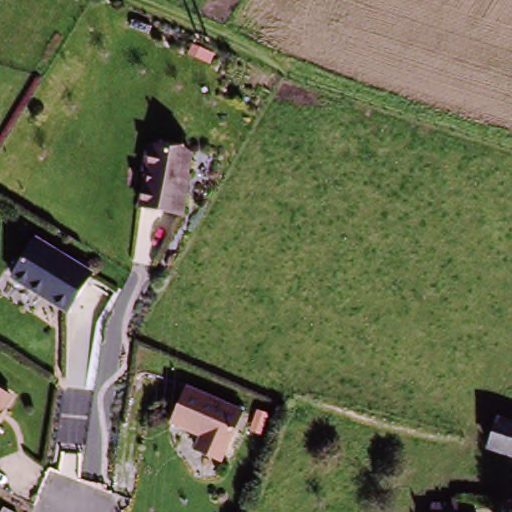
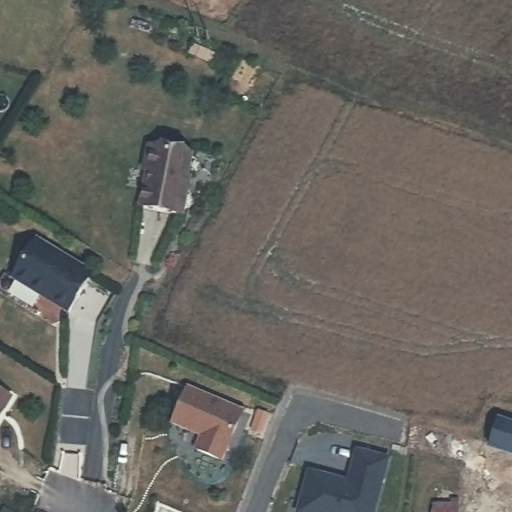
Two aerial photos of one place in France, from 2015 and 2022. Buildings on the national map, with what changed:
unchanged [(191,157),(180,214),(140,206),(147,174),(142,173),(147,148),(191,157)]
unchanged [(92,276),(68,314),(12,279),(36,241),(92,276)]
unchanged [(244,411),(222,459),(197,448),(204,434),(174,421),(190,386),(244,411)]
unchanged [(13,396),(0,417),(0,387),(13,396)]
unchanged [(512,455),(484,447),(488,439),(495,420),(506,424),(512,425),(512,455)]
new [(351,482),(357,450),(389,457),(378,512),(303,512),(311,474),(351,482)]
unchanged [(14,512),(0,512),(0,508),(4,499),(17,506),(14,512)]
unchanged [(454,510),(454,512),(428,512),(428,510),(454,510)]

